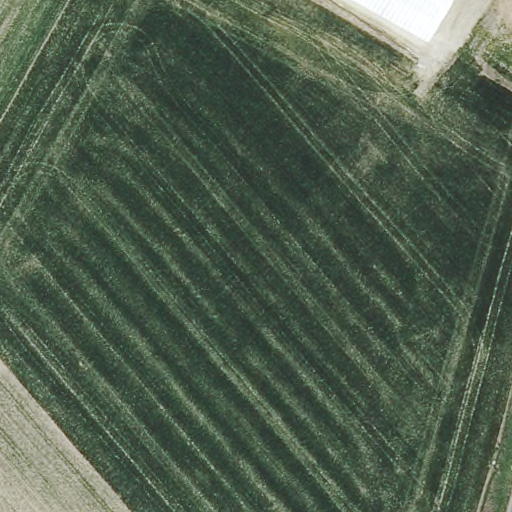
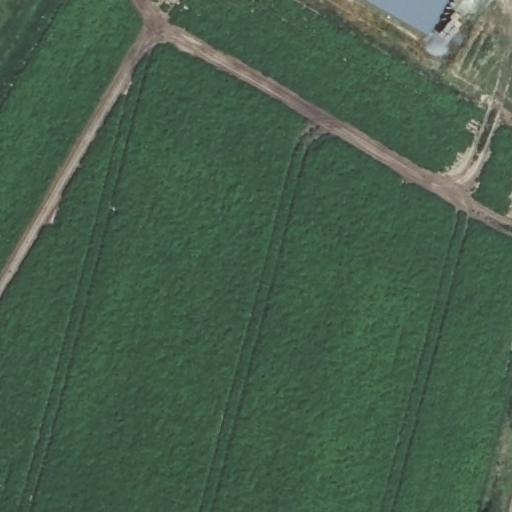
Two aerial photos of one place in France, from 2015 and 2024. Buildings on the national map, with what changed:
unchanged [(363,0),(450,0),(430,37),(363,0)]

